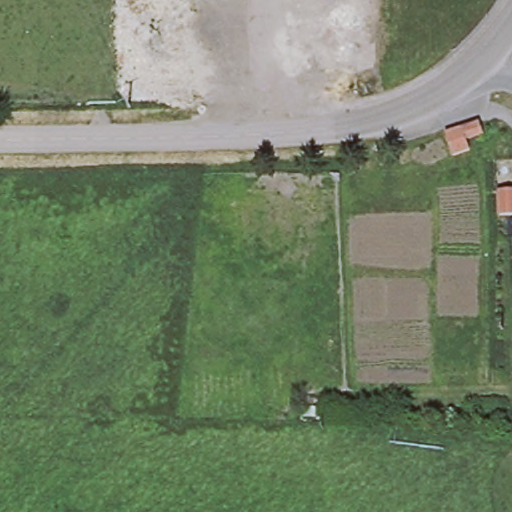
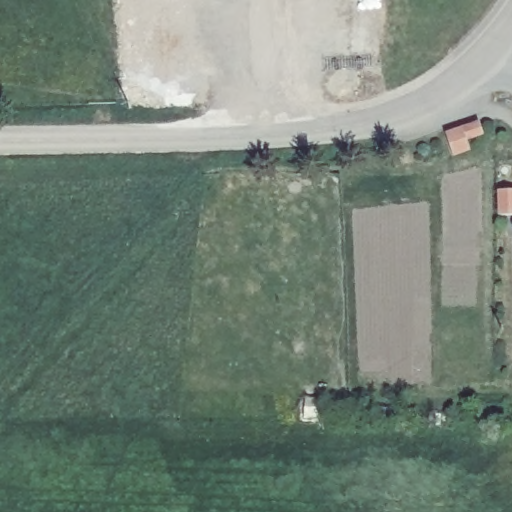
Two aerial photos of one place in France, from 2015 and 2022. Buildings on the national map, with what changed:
unchanged [(454,159),(445,138),(462,131),(479,125),(483,136),(467,143),(470,153),(454,159)]
unchanged [(504,193),(512,193),(512,216),(504,216),(504,193)]

